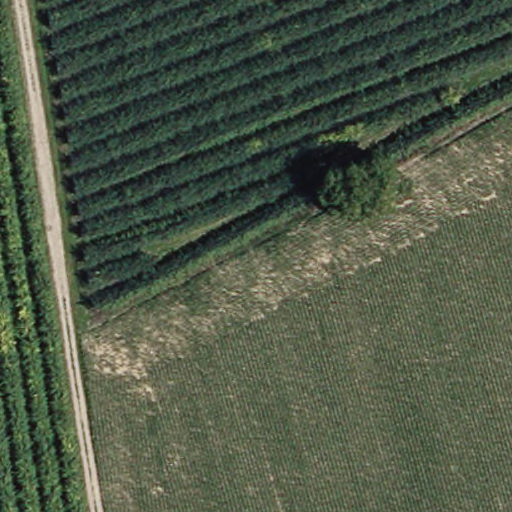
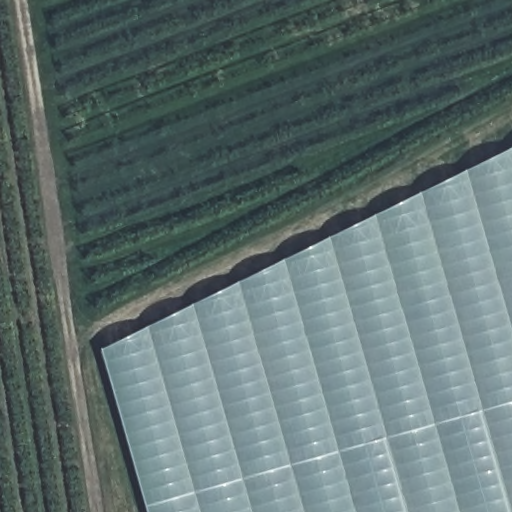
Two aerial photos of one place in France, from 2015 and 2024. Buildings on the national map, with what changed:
new [(99,350),(512,148),(512,512),(145,512),(99,350)]

